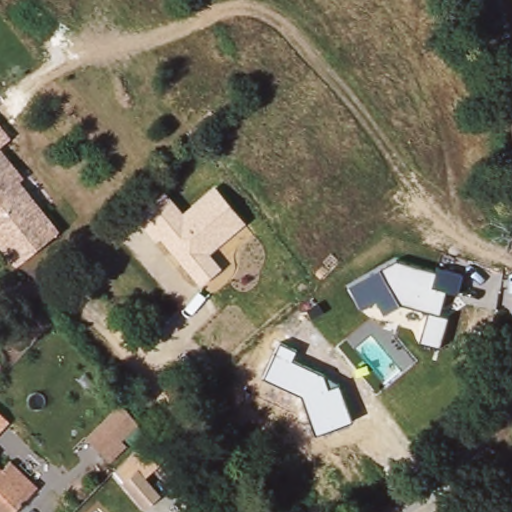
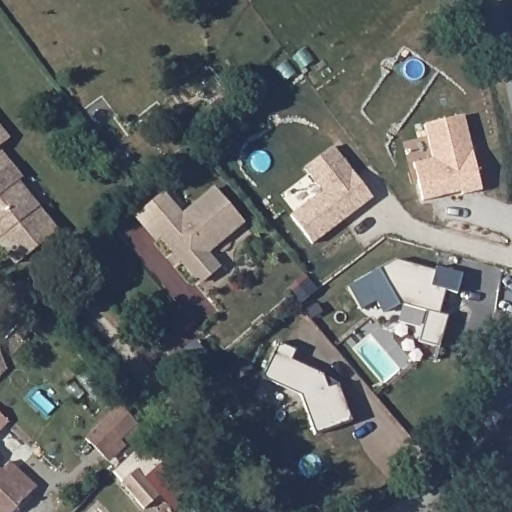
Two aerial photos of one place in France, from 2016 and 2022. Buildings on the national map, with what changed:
new [(423,200),(414,162),(434,158),(426,124),(464,115),(483,190),(463,195),(462,191),(449,194),(443,196),(423,200)]
unchanged [(3,149),(0,150),(0,125),(11,140),(3,149)]
new [(373,197),(314,244),(293,215),(323,191),(305,167),(336,146),(373,197)]
unchanged [(27,179),(23,182),(63,232),(24,263),(0,234),(0,150),(3,149),(27,179)]
unchanged [(209,254),(221,268),(200,286),(160,239),(155,242),(136,217),(164,192),(183,214),(215,187),(246,222),(209,254)]
unchanged [(419,342),(427,312),(399,304),(384,315),(377,301),(362,308),(350,286),(397,261),(437,275),(439,267),(464,273),(459,294),(447,292),(440,315),(448,317),(439,346),(419,342)]
unchanged [(316,433),(303,396),(263,377),(278,345),(294,351),(291,361),(338,385),(350,422),(316,433)]
unchanged [(109,463),(85,437),(119,406),(138,425),(121,441),(127,447),(109,463)]
unchanged [(144,510),(113,473),(144,446),(161,463),(145,478),(159,497),(144,510)]
unchanged [(11,461),(39,487),(15,512),(0,512),(0,466),(4,469),(11,461)]

